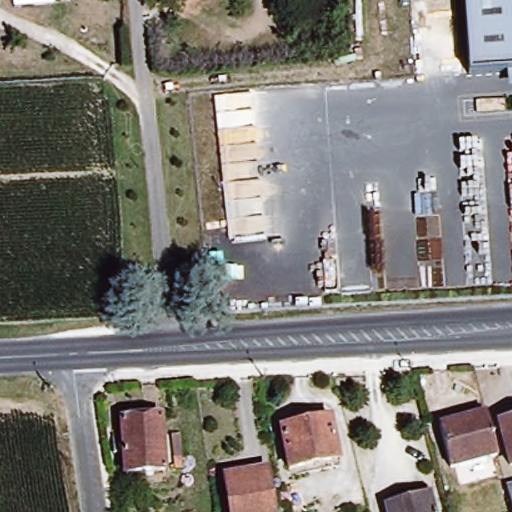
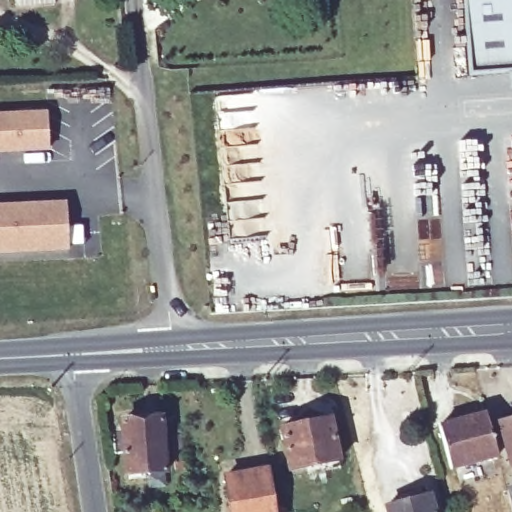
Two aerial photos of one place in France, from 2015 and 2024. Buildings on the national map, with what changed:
unchanged [(54,0),(54,3),(11,6),(11,0),(54,0)]
unchanged [(461,0),(512,0),(512,74),(467,78),(461,0)]
unchanged [(508,90),(508,75),(512,74),(512,90),(508,90)]
new [(49,151),(0,153),(0,113),(47,111),(49,151)]
new [(0,204),(67,201),(69,250),(0,254),(0,204)]
unchanged [(439,428),(485,415),(497,459),(450,471),(439,428)]
unchanged [(163,472),(125,474),(122,421),(159,419),(163,472)]
unchanged [(290,478),(289,471),(280,431),(328,421),(337,461),(338,468),(290,478)]
unchanged [(509,467),(497,425),(512,421),(512,466),(509,467)]
unchanged [(226,478),(265,472),(271,512),(231,512),(226,478)]
unchanged [(506,492),(512,490),(512,512),(511,512),(506,492)]
unchanged [(386,508),(428,498),(432,512),(388,512),(386,508)]

